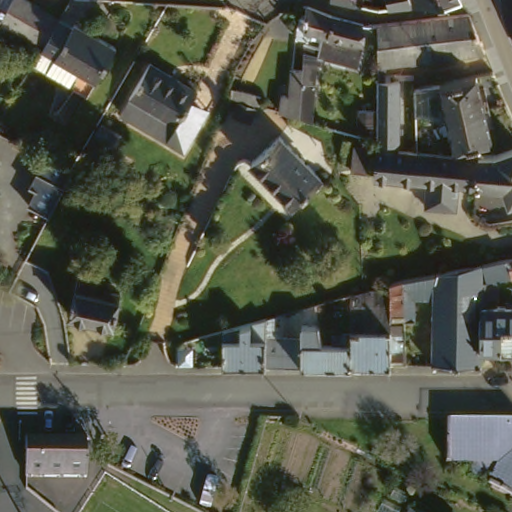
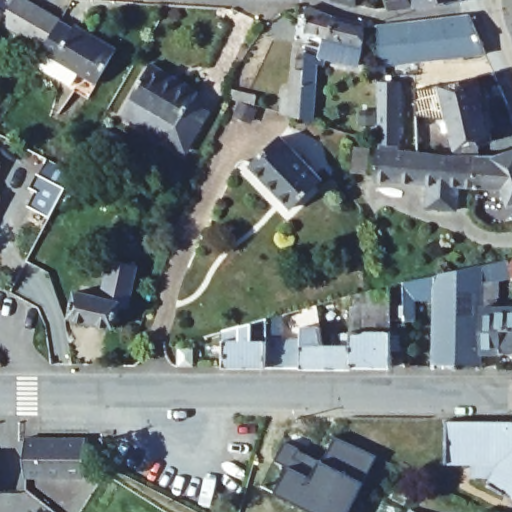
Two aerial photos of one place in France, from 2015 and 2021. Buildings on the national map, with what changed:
unchanged [(88,72),(82,82),(48,62),(54,52),(56,48),(42,41),(33,35),(11,22),(24,0),(35,0),(49,7),(59,14),(71,22),(89,32),(92,28),(127,49),(107,83),(88,72)]
unchanged [(365,3),(350,0),(365,0),(365,3)]
unchanged [(394,0),(467,0),(418,5),(395,7),(394,0)]
unchanged [(304,66),(313,66),(311,95),(313,94),(313,92),(315,46),(316,41),(329,45),(330,45),(332,33),(317,30),(316,37),(307,37),(308,25),(315,25),(319,5),(344,13),(377,21),(374,42),(369,65),(338,56),(336,63),(330,62),(326,86),(323,121),(319,119),(311,116),(292,110),(293,93),(301,94),(304,66)]
unchanged [(1,13),(0,15),(0,12),(1,13)]
unchanged [(440,57),(436,17),(480,12),(497,51),(440,57)]
unchanged [(440,57),(410,61),(406,62),(387,62),(388,22),(403,21),(436,17),(440,57)]
unchanged [(191,98),(207,107),(187,145),(170,135),(178,120),(130,92),(149,57),(198,85),(191,98)]
unchanged [(449,82),(483,75),(491,106),(455,114),(451,115),(429,112),(422,112),(421,85),(449,82)]
unchanged [(399,85),(399,102),(377,102),(377,84),(399,85)]
unchanged [(233,113),(236,104),(237,104),(242,104),(245,94),(259,99),(256,107),(254,107),(250,119),(233,113)]
unchanged [(499,139),(464,147),(455,114),(491,106),(499,139)]
unchanged [(301,205),(257,162),(287,132),(329,176),(301,205)]
unchanged [(382,171),(375,171),(366,170),(367,145),(377,146),(384,146),(382,171)]
unchanged [(468,181),(467,204),(443,203),(445,180),(390,175),(392,146),(451,153),(462,155),(494,156),(492,183),(468,181)]
unchanged [(512,153),(512,189),(511,185),(492,183),(494,156),(503,156),(512,153)]
unchanged [(44,195),(38,191),(53,163),(75,175),(52,219),(36,210),(44,195)]
unchanged [(512,349),(488,349),(487,280),(492,280),(491,263),(512,258),(512,276),(504,277),(503,290),(503,302),(512,302),(512,349)]
unchanged [(487,280),(488,349),(488,366),(440,365),(441,296),(423,296),(422,317),(411,317),(410,280),(451,272),(487,264),(487,280)]
unchanged [(411,317),(412,361),(396,360),(396,365),(357,362),(358,342),(348,342),(348,330),(357,330),(358,293),(366,291),(408,281),(410,280),(411,317)]
unchanged [(98,286),(94,302),(102,303),(103,296),(120,301),(113,331),(70,321),(78,282),(98,286)]
unchanged [(289,363),(229,363),(230,328),(272,317),(287,313),(287,336),(289,336),(289,363)]
unchanged [(308,336),(308,342),(329,342),(348,342),(358,342),(357,362),(357,365),(289,363),(289,336),(308,336)]
unchanged [(512,491),(493,482),(498,473),(476,473),(477,461),(451,460),(450,417),(512,417),(512,491)]
unchanged [(95,478),(31,477),(32,435),(96,437),(95,478)]
new [(321,460),(324,461),(336,437),(377,457),(349,512),(337,512),(332,509),(330,512),(325,512),(301,500),(289,499),(277,492),(289,467),(276,461),(285,442),(300,449),(321,460)]
demolished [(55,512),(42,503),(50,492),(64,501),(56,512),(55,512)]
unchanged [(423,512),(415,512),(418,508),(423,512)]

